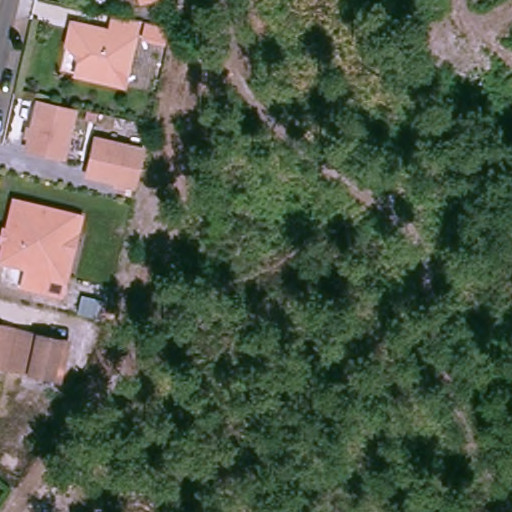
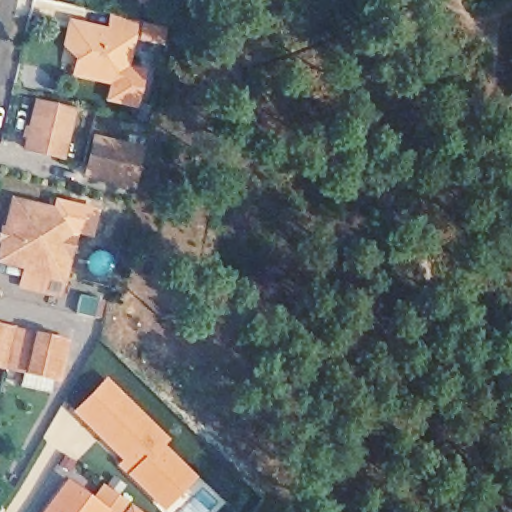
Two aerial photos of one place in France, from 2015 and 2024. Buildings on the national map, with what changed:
unchanged [(141,0),(147,0),(143,3),(141,0)]
unchanged [(85,77),(90,52),(76,50),(82,25),(95,27),(119,34),(122,17),(146,24),(144,41),(131,89),(85,77)]
unchanged [(52,102),(76,107),(64,156),(27,147),(40,99),(40,98),(52,102)]
unchanged [(143,149),(135,186),(85,174),(94,137),(143,149)]
unchanged [(27,268),(0,262),(0,260),(15,202),(75,217),(81,219),(65,277),(61,297),(22,287),(27,268)]
unchanged [(0,334),(0,328),(1,328),(0,334)]
unchanged [(21,372),(0,367),(0,334),(1,328),(30,336),(21,372)]
unchanged [(66,345),(57,381),(21,372),(30,336),(66,345)]
new [(105,376),(170,438),(165,443),(200,478),(166,512),(163,512),(115,464),(119,460),(71,411),(105,376)]
new [(66,480),(89,495),(103,483),(142,512),(42,512),(66,480)]

